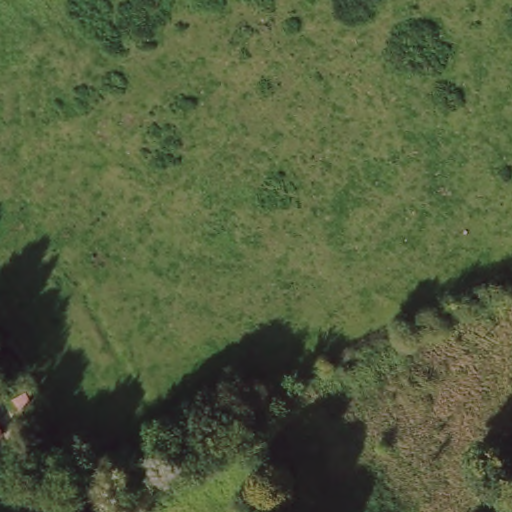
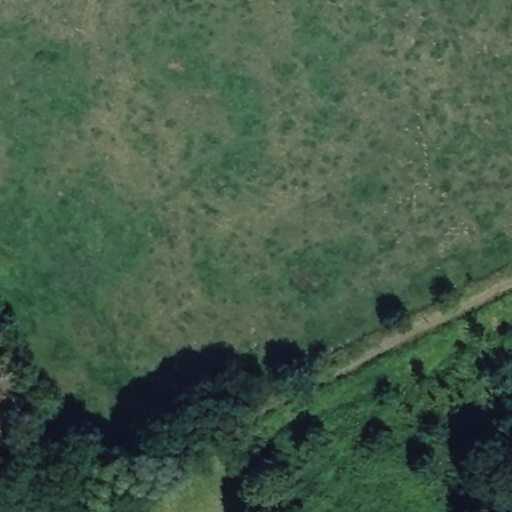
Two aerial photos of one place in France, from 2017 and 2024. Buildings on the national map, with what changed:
unchanged [(0,438),(0,429),(4,436),(0,438)]

